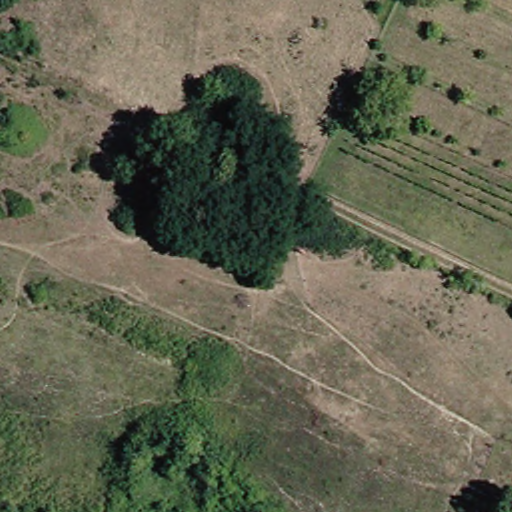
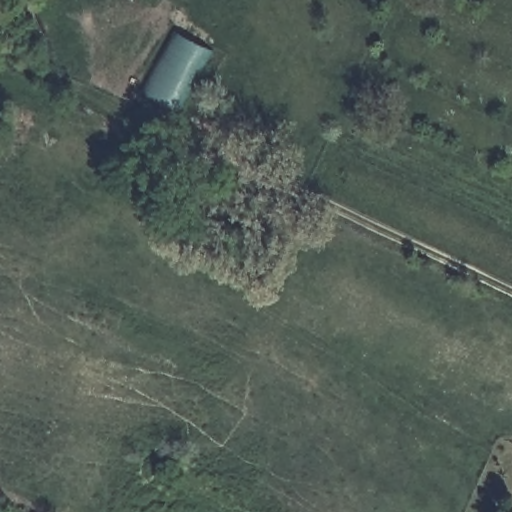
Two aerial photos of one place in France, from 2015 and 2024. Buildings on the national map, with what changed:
new [(210,51),(180,109),(144,89),(175,30),(210,51)]

